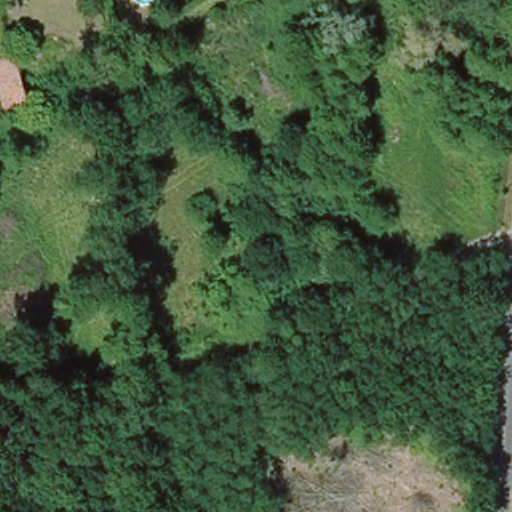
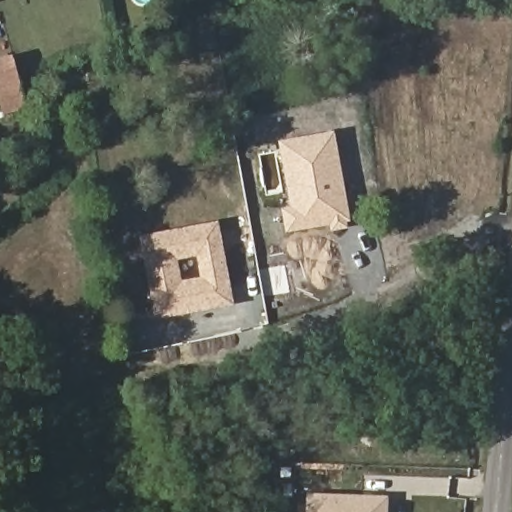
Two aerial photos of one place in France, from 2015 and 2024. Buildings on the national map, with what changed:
unchanged [(0,59),(16,55),(17,60),(28,105),(5,110),(0,89),(0,59)]
new [(351,221),(286,232),(282,211),(293,209),(280,140),(335,131),(351,221)]
new [(218,221),(234,305),(154,319),(140,236),(218,221)]
new [(306,493),(389,496),(388,512),(306,512),(306,493)]

